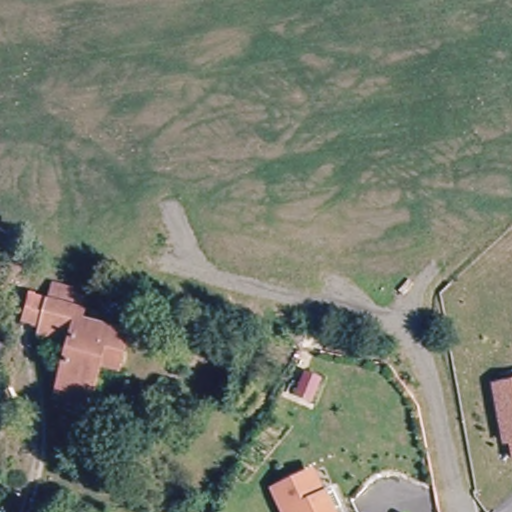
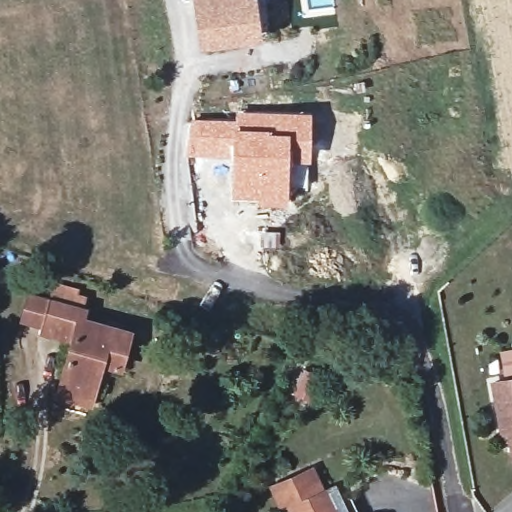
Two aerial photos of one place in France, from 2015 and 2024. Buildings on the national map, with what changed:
new [(192,0),(256,0),(261,40),(199,51),(192,0)]
new [(190,119),(235,119),(235,111),(312,111),(310,163),(290,162),(288,203),(232,198),(231,157),(187,156),(190,119)]
unchanged [(55,395),(60,375),(67,339),(34,330),(42,296),(85,306),(83,312),(127,322),(120,360),(101,357),(94,385),(89,403),(55,395)]
unchanged [(300,395),(312,371),(328,379),(315,402),(300,395)]
unchanged [(496,387),(512,384),(512,443),(502,444),(496,387)]
unchanged [(267,488),(303,471),(315,495),(327,490),(337,512),(278,512),(267,488)]

